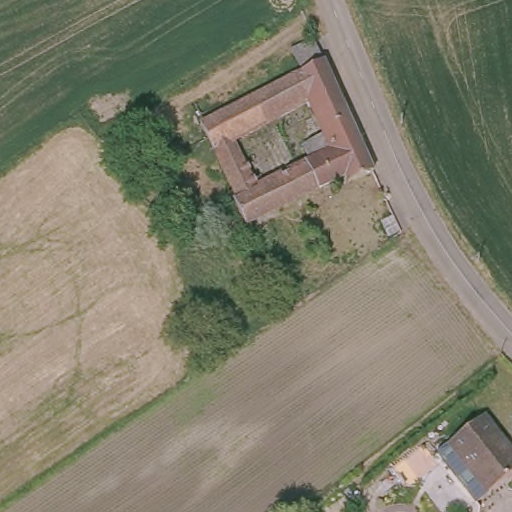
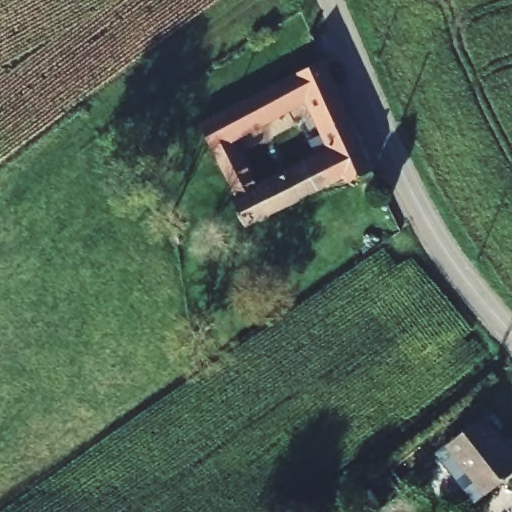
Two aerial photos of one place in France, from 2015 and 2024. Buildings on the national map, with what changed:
unchanged [(297,62),(291,51),(311,40),(317,52),(297,62)]
unchanged [(359,179),(354,176),(243,230),(232,206),(233,200),(199,127),(323,65),(375,171),(359,179)]
unchanged [(483,417),(512,458),(512,477),(486,495),(448,442),(483,417)]

